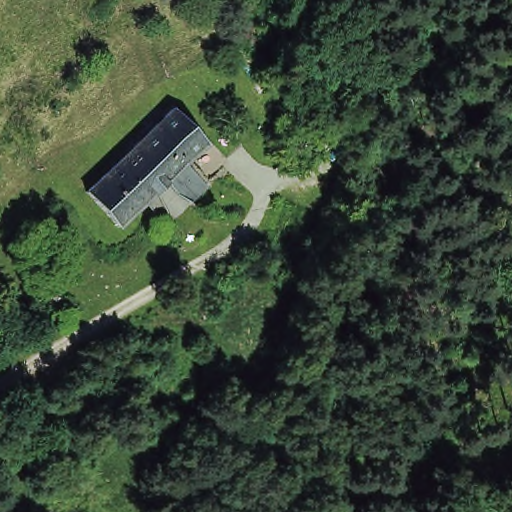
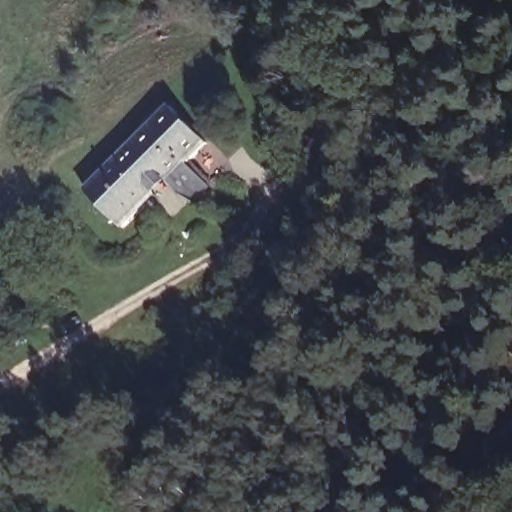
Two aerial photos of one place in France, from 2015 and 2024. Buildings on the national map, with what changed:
unchanged [(147,201),(124,224),(87,188),(170,104),(207,141),(188,159),(147,201)]
unchanged [(188,159),(212,183),(176,218),(170,213),(165,218),(147,201),(188,159)]

